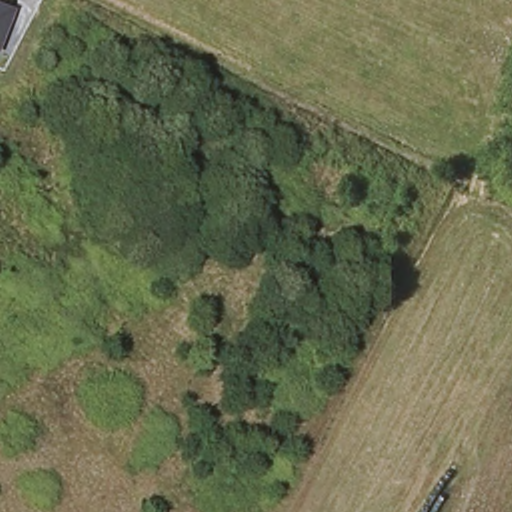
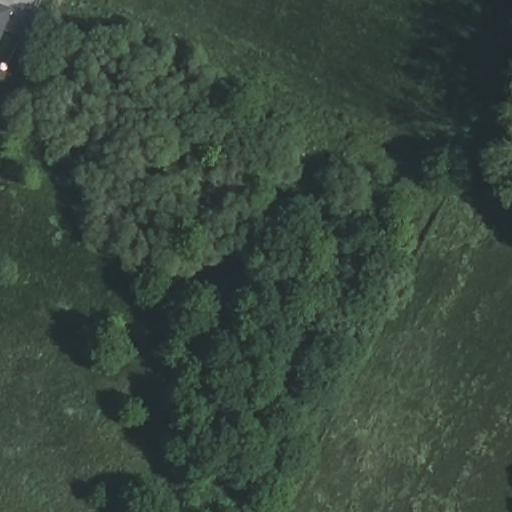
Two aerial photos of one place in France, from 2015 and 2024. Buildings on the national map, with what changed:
unchanged [(0,4),(14,10),(0,43),(0,4)]

